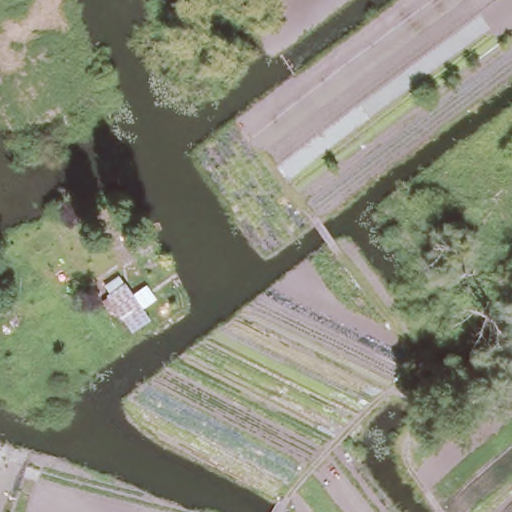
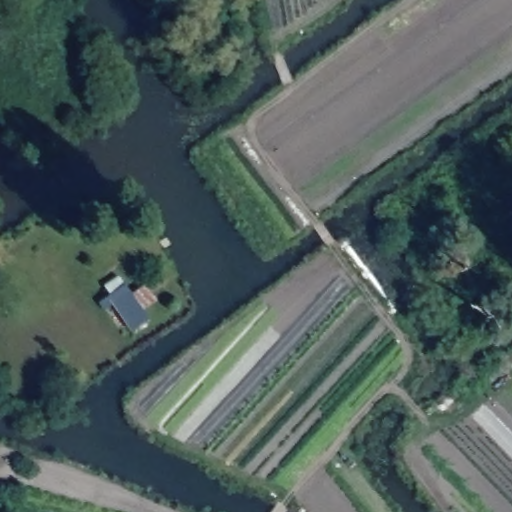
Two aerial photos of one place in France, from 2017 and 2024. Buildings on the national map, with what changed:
unchanged [(146,315),(129,327),(108,293),(124,280),(146,315)]

